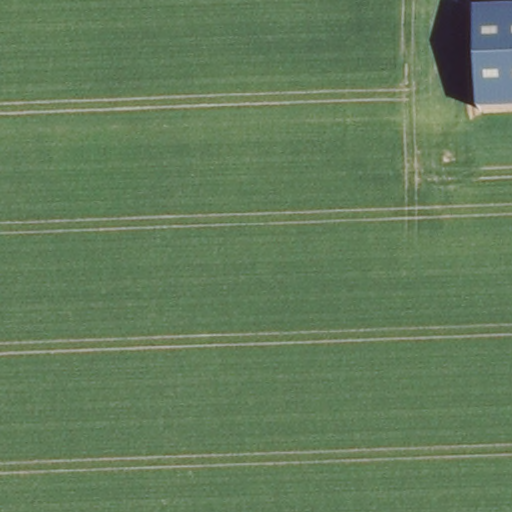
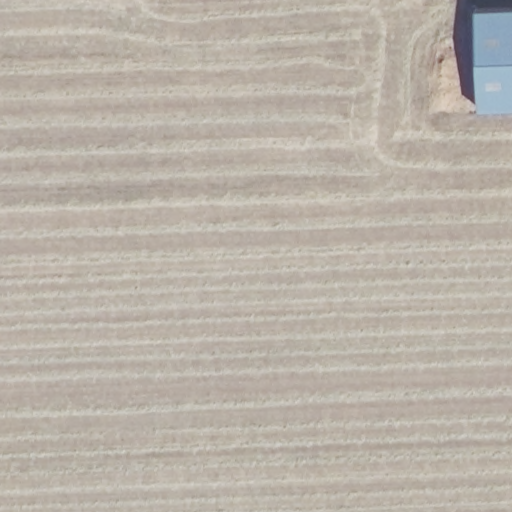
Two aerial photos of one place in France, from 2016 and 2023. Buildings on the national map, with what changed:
unchanged [(477,108),(473,6),(512,4),(512,106),(477,108)]

